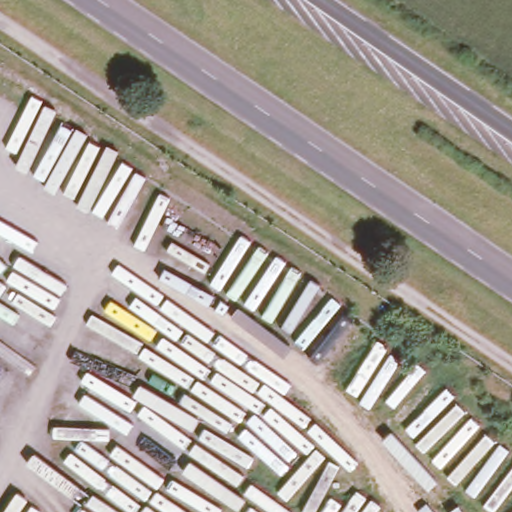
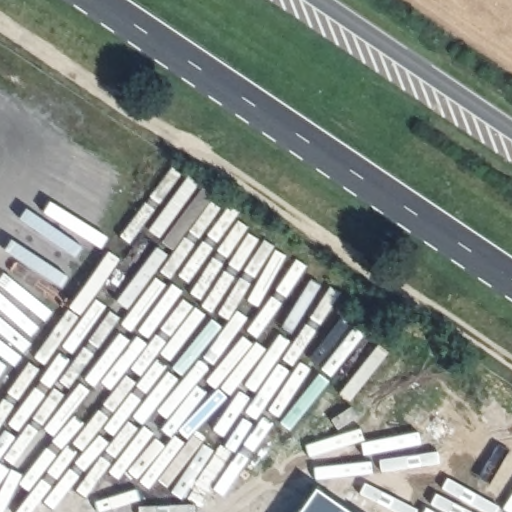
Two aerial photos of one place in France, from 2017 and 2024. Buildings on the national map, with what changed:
new [(317,489),(350,512),(301,512),(317,489)]

